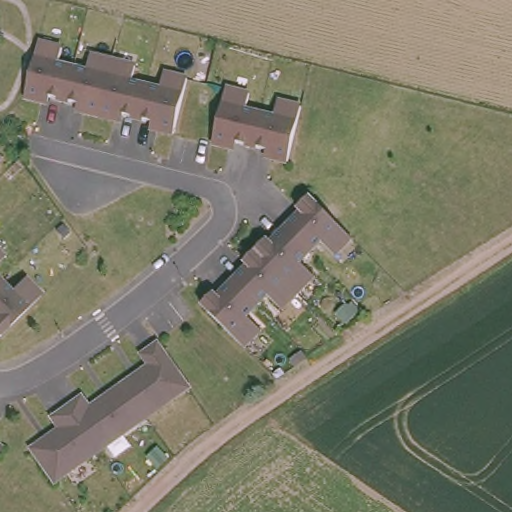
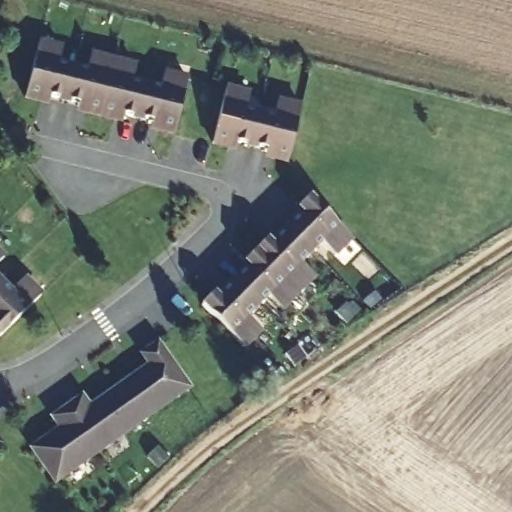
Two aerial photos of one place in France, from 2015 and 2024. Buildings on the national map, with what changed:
unchanged [(173,134),(156,130),(157,124),(116,114),(115,120),(82,112),(84,106),(42,96),(41,101),(24,97),(37,42),(61,48),(57,65),(85,72),(90,55),(135,66),(130,82),(159,90),(163,73),(186,79),(173,134)]
unchanged [(287,161),(270,157),(272,151),(230,141),(228,147),(212,143),(225,89),(248,94),(245,111),(272,117),(277,101),(300,107),(287,161)]
unchanged [(200,305),(212,292),(217,297),(247,266),(243,262),(266,239),(270,243),(300,212),(297,208),(308,197),(350,238),(333,256),(319,241),(298,262),(313,276),(280,309),(266,295),(245,316),(260,330),(243,347),(200,305)]
unchanged [(2,257),(0,260),(0,255),(2,257)]
unchanged [(9,292),(23,278),(40,295),(0,335),(0,283),(9,292)]
unchanged [(55,481),(32,448),(60,428),(52,417),(81,397),(88,408),(149,365),(142,354),(157,344),(187,387),(55,481)]

